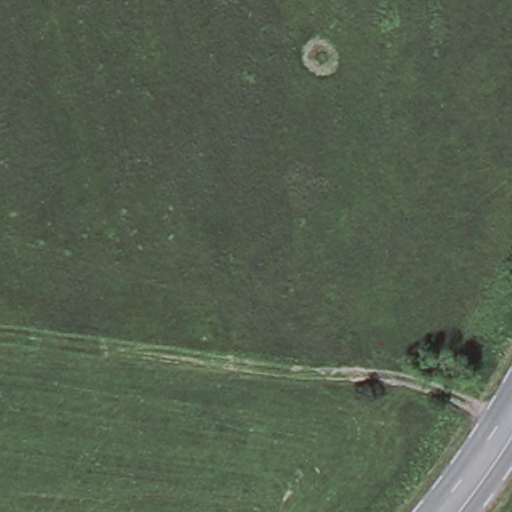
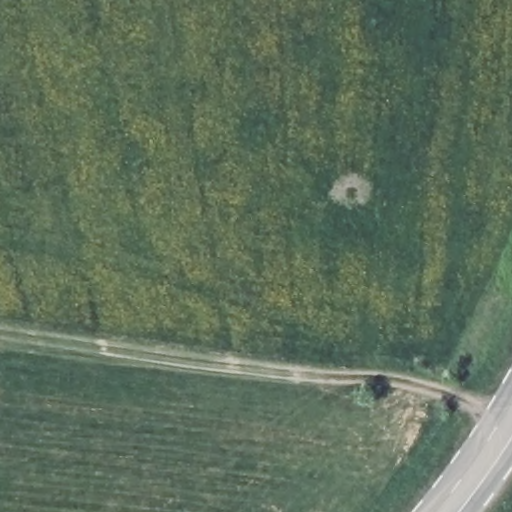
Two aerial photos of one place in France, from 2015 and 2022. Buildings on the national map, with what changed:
[]

